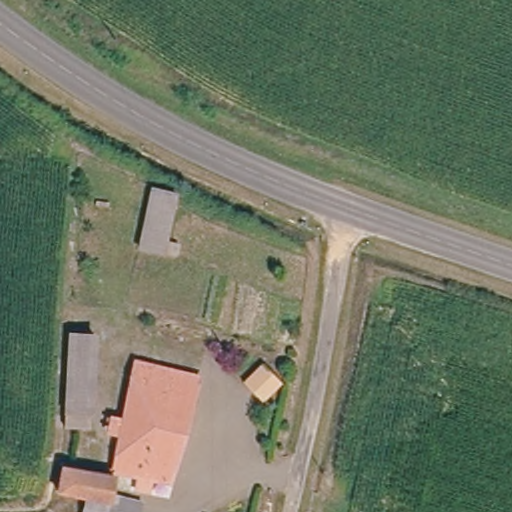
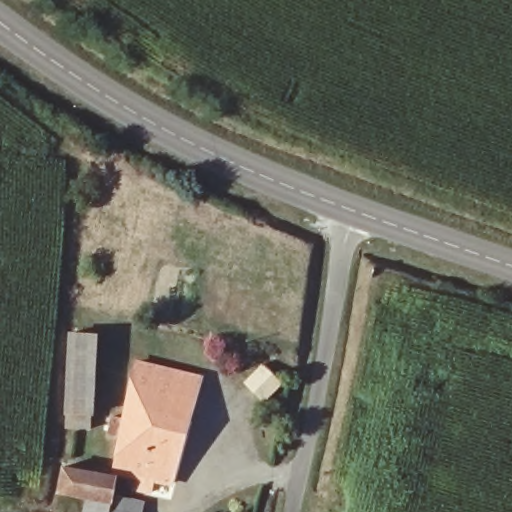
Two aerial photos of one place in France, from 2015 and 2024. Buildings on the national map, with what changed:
demolished [(175,192),(166,238),(178,242),(177,257),(161,256),(134,251),(144,184),(175,192)]
unchanged [(94,335),(88,412),(87,429),(59,428),(60,414),(64,334),(94,335)]
unchanged [(156,484),(154,496),(141,493),(143,480),(139,479),(116,475),(123,442),(113,439),(116,421),(127,424),(140,367),(199,383),(179,473),(176,487),(156,484)]
unchanged [(64,469),(109,477),(105,500),(83,496),(60,492),(64,469)]
unchanged [(140,508),(140,512),(80,512),(83,496),(105,500),(140,508)]

